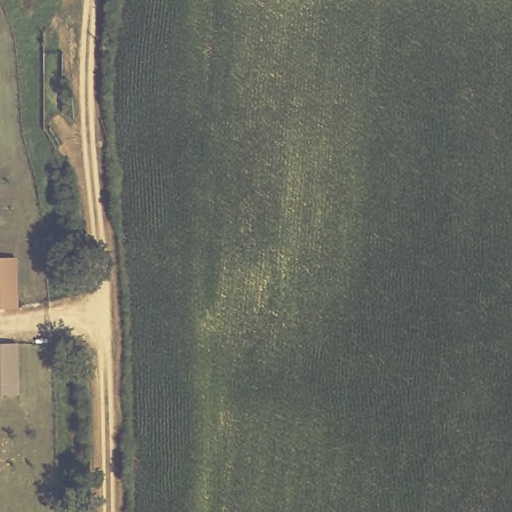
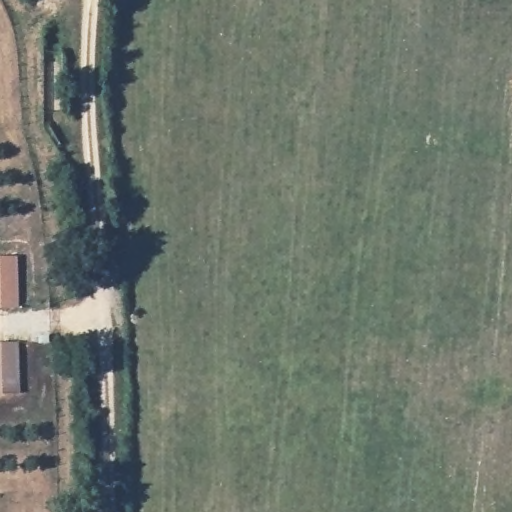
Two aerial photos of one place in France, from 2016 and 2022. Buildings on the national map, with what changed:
unchanged [(18,258),(19,310),(0,310),(0,259),(18,258)]
unchanged [(19,343),(20,343),(21,395),(0,395),(0,344),(19,343)]

